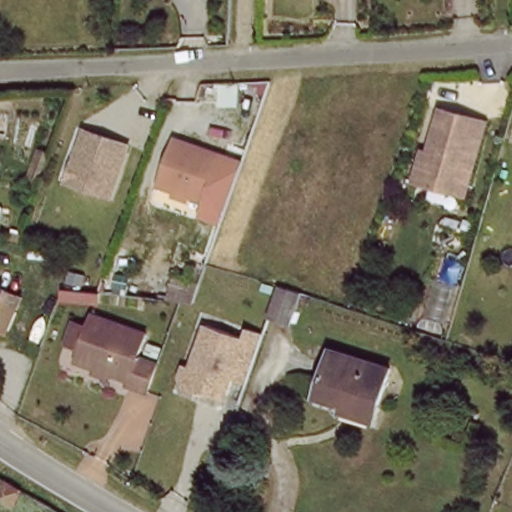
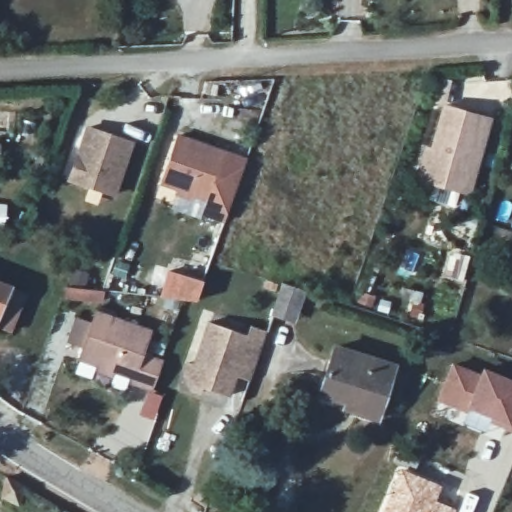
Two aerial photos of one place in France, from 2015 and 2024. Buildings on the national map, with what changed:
unchanged [(454,192),(427,185),(412,181),(416,169),(421,149),(427,151),(438,107),(484,120),(466,186),(463,195),(454,192)]
unchanged [(80,165),(90,136),(134,151),(116,202),(83,192),(72,187),(80,165)]
unchanged [(163,195),(179,147),(226,164),(210,211),(163,195)]
unchanged [(0,210),(3,211),(1,231),(0,230),(0,210)]
new [(448,247),(470,254),(463,282),(440,277),(448,247)]
unchanged [(173,277),(198,283),(194,298),(193,302),(178,301),(166,300),(173,277)]
unchanged [(289,322),(269,316),(279,287),(299,293),(289,322)]
unchanged [(0,330),(0,289),(14,295),(0,330)]
unchanged [(151,337),(143,361),(163,367),(153,395),(133,388),(134,383),(81,365),(85,353),(71,348),(79,326),(93,331),(98,318),(151,337)]
unchanged [(188,393),(179,378),(183,366),(191,367),(205,325),(243,337),(246,327),(263,333),(252,365),(246,382),(231,377),(224,398),(198,390),(196,396),(188,393)]
unchanged [(345,414),(346,408),(321,400),(337,352),(396,371),(383,410),(378,426),(345,414)]
new [(451,361),(479,372),(464,415),(434,402),(451,361)]
new [(464,415),(479,372),(482,366),(512,379),(512,433),(489,425),(486,433),(460,422),(464,415)]
new [(397,465),(442,485),(436,500),(455,508),(453,512),(378,512),(397,465)]
unchanged [(0,497),(0,496),(10,475),(34,486),(22,505),(0,497)]

